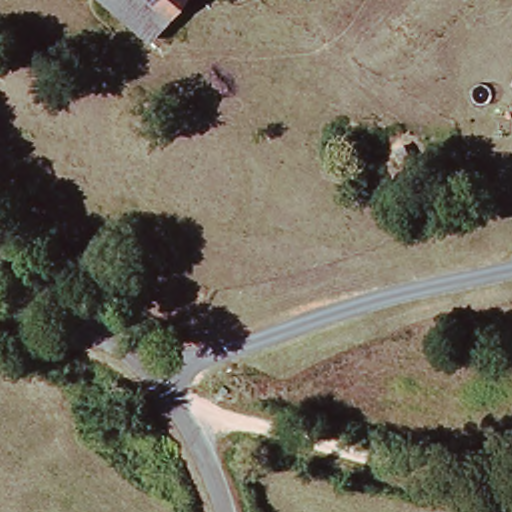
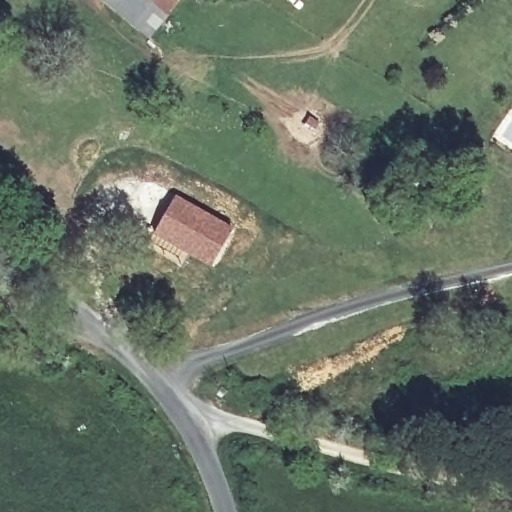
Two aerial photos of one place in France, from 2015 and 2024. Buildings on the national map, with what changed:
unchanged [(179,0),(142,40),(98,0),(179,0)]
new [(172,196),(230,229),(210,265),(152,232),(172,196)]

